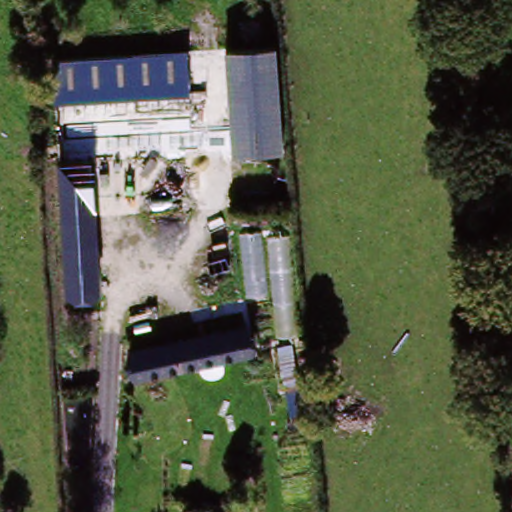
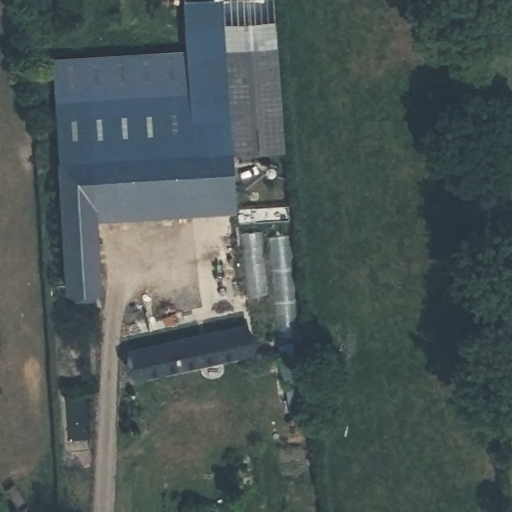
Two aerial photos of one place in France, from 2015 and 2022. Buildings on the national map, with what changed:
new [(184,25),(274,18),(279,47),(276,46),(225,49),(228,100),(189,103),(188,92),(186,51),(184,25)]
unchanged [(276,46),(283,151),(232,154),(225,49),(276,46)]
unchanged [(188,92),(54,103),(50,64),(186,51),(188,92)]
new [(164,141),(231,134),(232,154),(234,208),(95,216),(86,216),(85,199),(59,201),(54,103),(160,95),(164,141)]
unchanged [(85,199),(86,216),(95,216),(101,298),(67,299),(59,201),(85,199)]
new [(296,334),(278,336),(268,235),(288,232),(296,334)]
unchanged [(269,293),(244,295),(238,234),(265,233),(269,293)]
unchanged [(241,351),(133,368),(129,345),(236,326),(241,351)]
unchanged [(303,384),(283,386),(276,340),(294,338),(303,384)]

